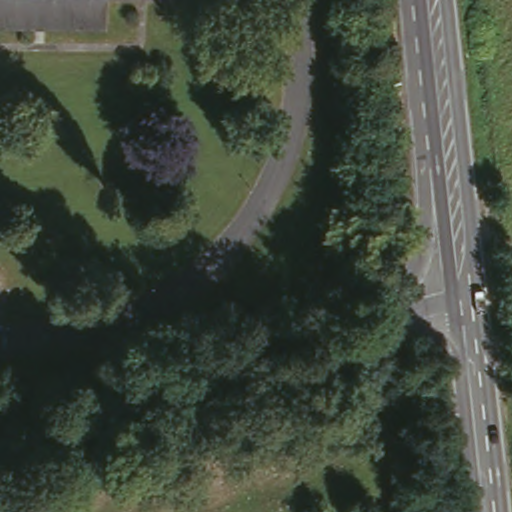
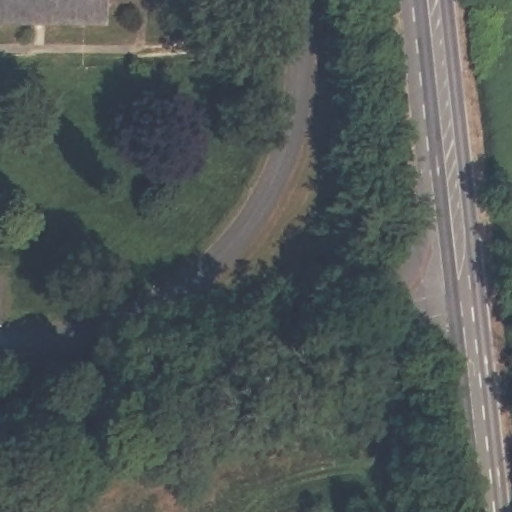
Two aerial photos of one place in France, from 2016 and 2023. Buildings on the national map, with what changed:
unchanged [(105,22),(0,22),(0,0),(106,0),(105,22)]

